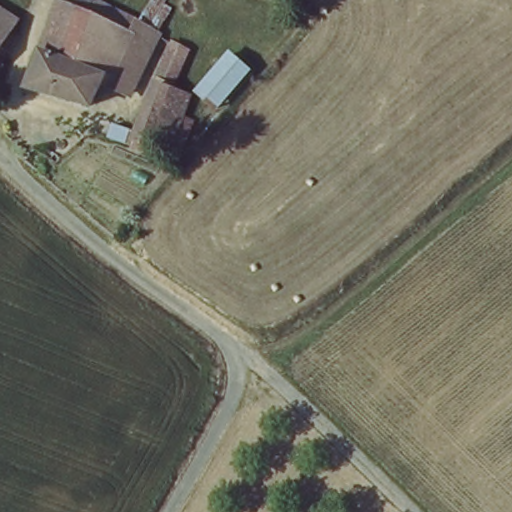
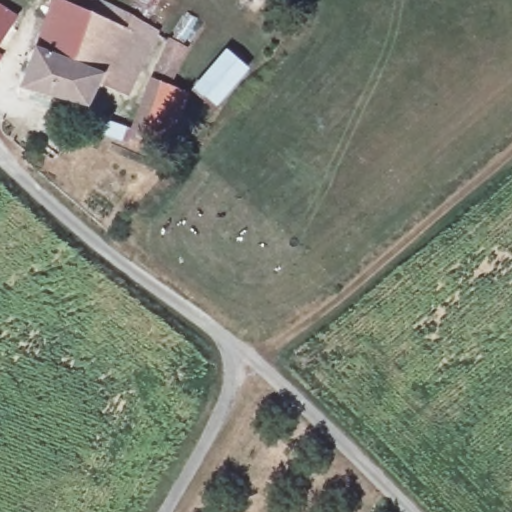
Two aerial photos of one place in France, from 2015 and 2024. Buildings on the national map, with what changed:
unchanged [(78,13),(128,33),(107,84),(97,78),(84,108),(27,86),(62,6),(65,0),(86,0),(78,13)]
unchanged [(128,33),(78,13),(86,0),(91,0),(157,34),(127,93),(107,84),(128,33)]
unchanged [(0,42),(0,18),(12,26),(0,42)]
unchanged [(186,49),(174,79),(158,73),(171,41),(186,49)]
unchanged [(200,94),(231,57),(250,73),(218,110),(200,94)]
unchanged [(95,135),(100,125),(132,136),(158,77),(172,86),(160,112),(147,141),(142,154),(95,135)]
unchanged [(190,93),(160,162),(142,154),(147,141),(160,112),(172,86),(190,93)]

